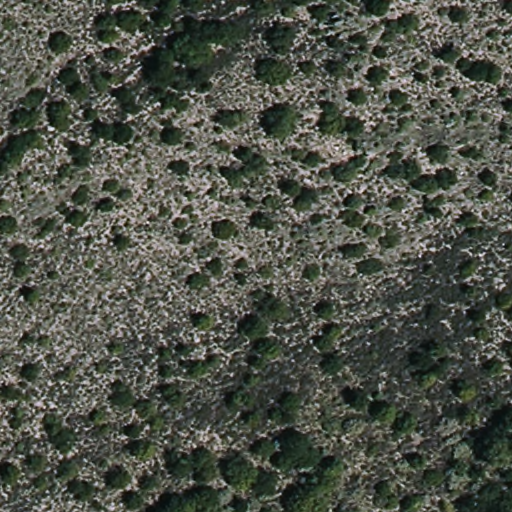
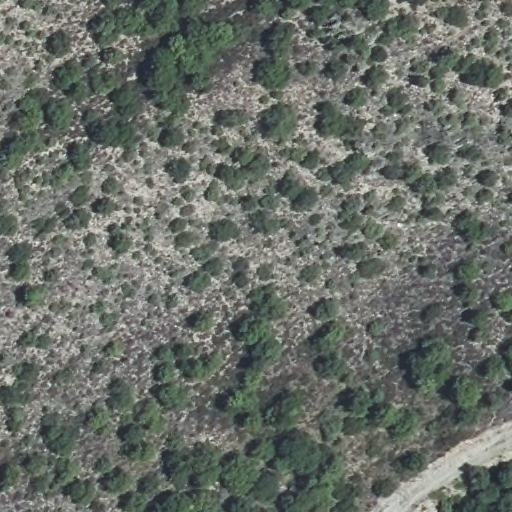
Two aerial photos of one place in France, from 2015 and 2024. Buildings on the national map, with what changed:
[]

